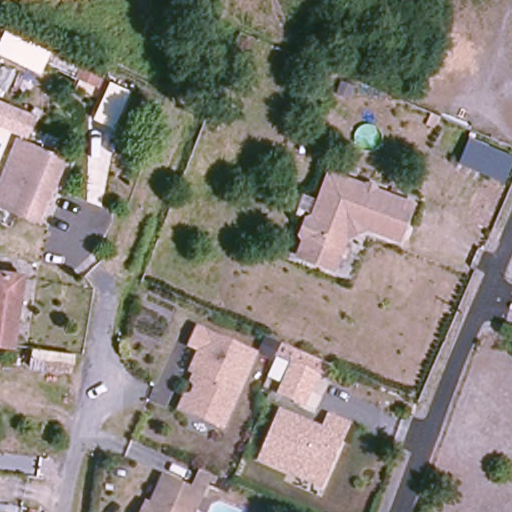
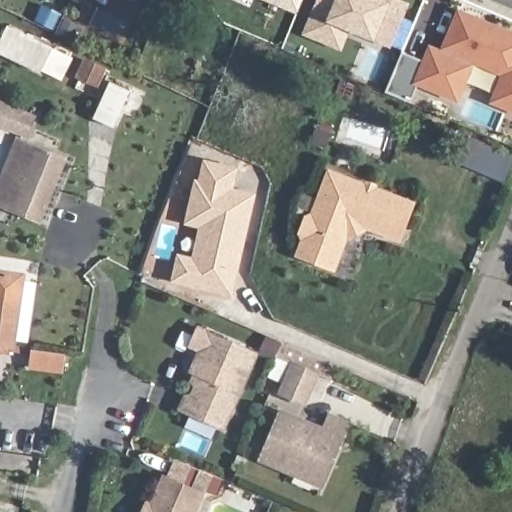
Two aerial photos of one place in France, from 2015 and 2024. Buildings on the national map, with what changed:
new [(274,0),(303,0),(299,10),(274,0)]
new [(396,0),(409,6),(392,45),(335,21),(326,41),(309,34),(323,0),(396,0)]
new [(403,54),(429,65),(434,52),(448,59),(455,42),(452,41),(462,17),(512,37),(512,108),(495,101),(507,74),(467,57),(462,72),(466,74),(457,98),(420,82),(412,104),(386,94),(403,54)]
new [(57,46),(43,77),(0,56),(0,46),(10,24),(57,46)]
unchanged [(84,57),(107,69),(97,89),(75,77),(84,57)]
new [(112,128),(92,118),(109,81),(130,90),(112,128)]
unchanged [(0,128),(0,101),(37,115),(31,141),(20,137),(0,128)]
unchanged [(26,161),(22,176),(8,172),(20,137),(31,141),(66,155),(59,172),(26,161)]
unchanged [(503,181),(459,161),(469,137),(512,157),(512,159),(503,181)]
new [(170,282),(176,254),(191,256),(197,227),(183,224),(194,178),(198,179),(203,160),(238,167),(233,187),(256,192),(232,295),(170,282)]
unchanged [(0,209),(0,197),(8,172),(22,176),(26,161),(59,172),(40,223),(0,209)]
unchanged [(334,261),(299,247),(306,231),(303,225),(309,211),(315,208),(334,165),(372,182),(376,180),(382,183),(384,186),(420,202),(405,237),(366,220),(351,222),(334,261)]
unchanged [(13,346),(0,344),(0,272),(23,276),(13,346)]
unchanged [(195,371),(200,360),(204,349),(194,345),(202,328),(259,353),(247,380),(227,427),(190,411),(184,408),(200,372),(195,371)]
unchanged [(330,382),(317,376),(305,405),(279,393),(292,363),(275,356),(281,343),(336,367),(330,382)]
unchanged [(73,376),(29,370),(31,350),(76,355),(73,376)]
unchanged [(260,461),(280,411),(323,430),(328,417),(329,415),(349,423),(348,426),(343,438),(321,487),(260,461)]
unchanged [(163,476),(203,495),(195,512),(147,512),(163,476)]

